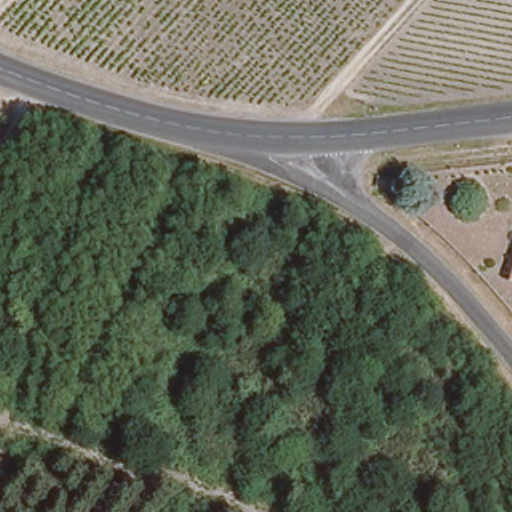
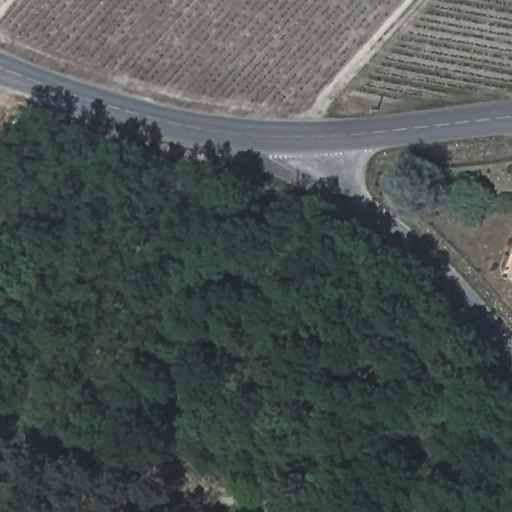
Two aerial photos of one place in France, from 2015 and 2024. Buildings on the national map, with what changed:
unchanged [(512,261),(512,278),(506,276),(512,261)]

